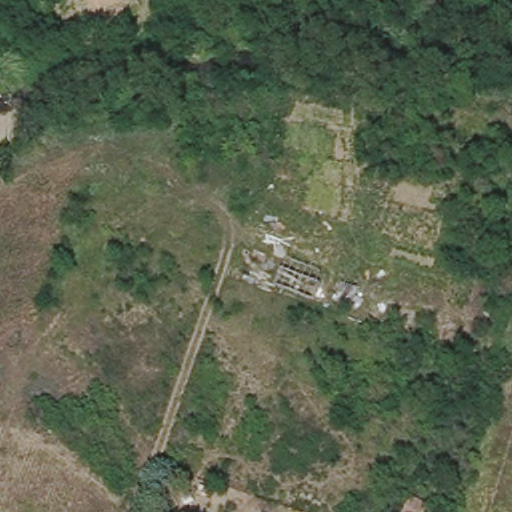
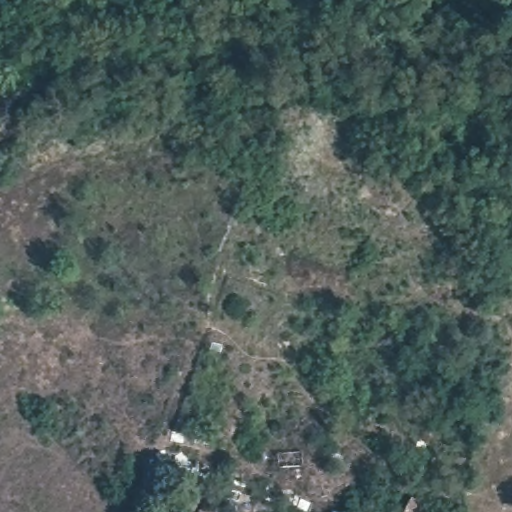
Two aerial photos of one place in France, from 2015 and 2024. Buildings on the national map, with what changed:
unchanged [(412,493),(430,503),(425,512),(402,512),(403,511),(412,493)]

